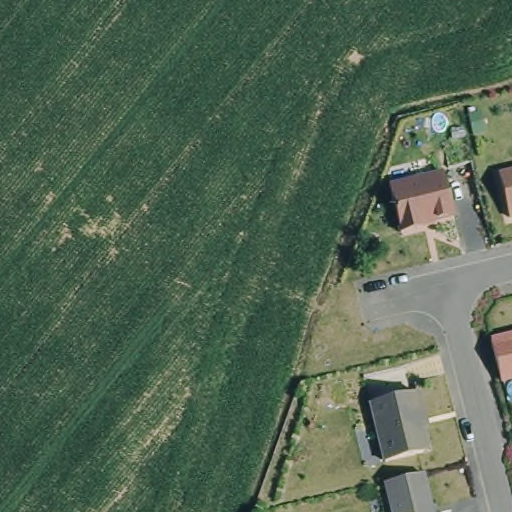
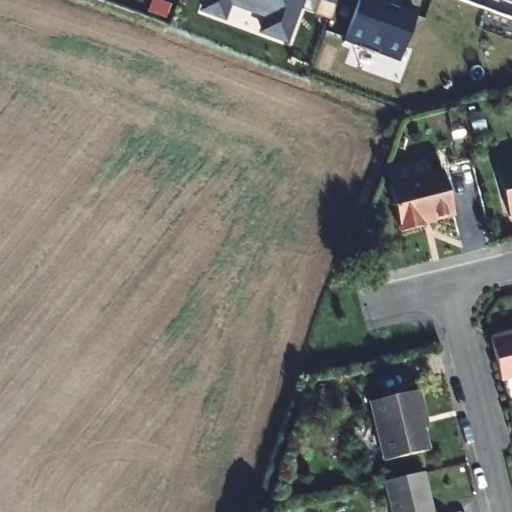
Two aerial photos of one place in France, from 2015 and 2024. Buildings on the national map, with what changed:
new [(257,35),(264,19),(230,6),(225,21),(196,10),(200,0),(304,0),(287,45),(257,35)]
new [(316,0),(336,0),(334,5),(316,0)]
new [(342,41),(358,0),(378,0),(417,14),(397,62),(342,41)]
new [(504,0),(512,0),(512,3),(504,0)]
unchanged [(449,173),(460,215),(428,224),(429,227),(407,232),(395,186),(449,173)]
unchanged [(512,177),(512,223),(509,224),(498,180),(512,177)]
unchanged [(512,336),(512,381),(502,383),(492,341),(512,336)]
unchanged [(422,392),(427,411),(423,416),(431,447),(427,454),(389,463),(375,404),(422,392)]
unchanged [(390,483),(404,480),(428,474),(435,506),(433,506),(435,512),(396,512),(390,483)]

